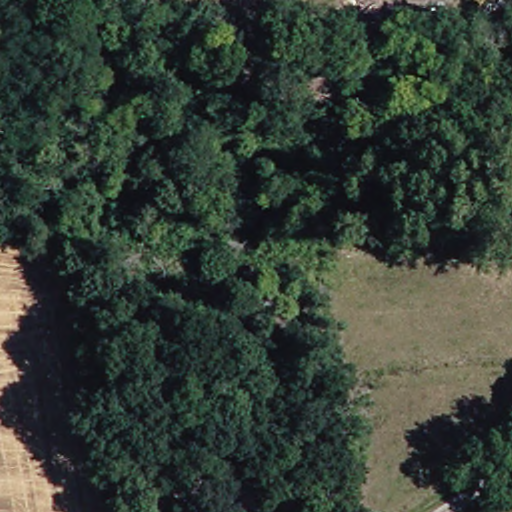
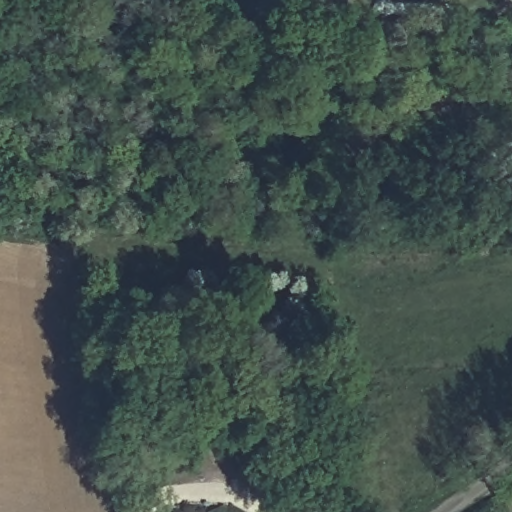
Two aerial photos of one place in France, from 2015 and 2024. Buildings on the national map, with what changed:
unchanged [(356,17),(357,0),(450,0),(450,21),(356,17)]

